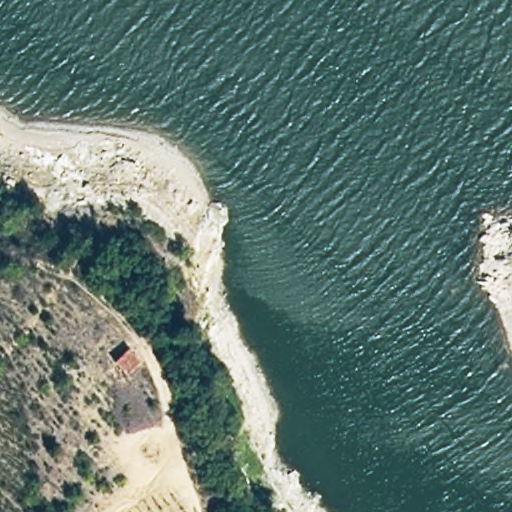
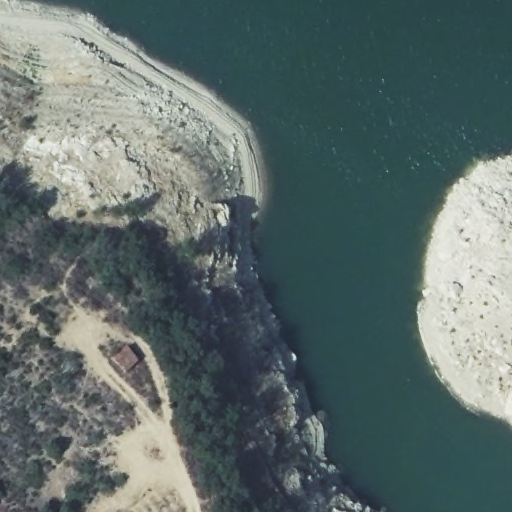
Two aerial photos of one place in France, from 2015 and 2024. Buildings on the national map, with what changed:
unchanged [(132,362),(120,371),(109,357),(120,349),(132,362)]

